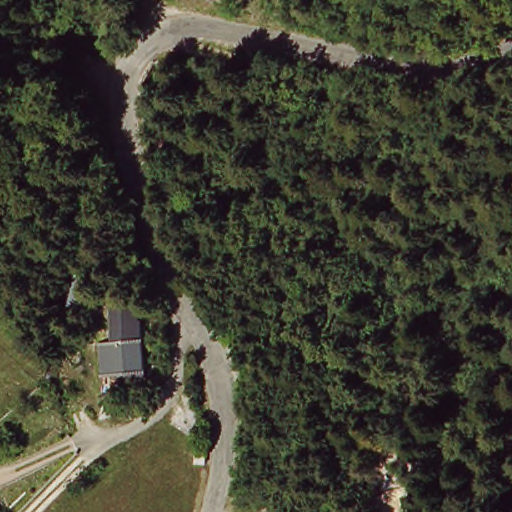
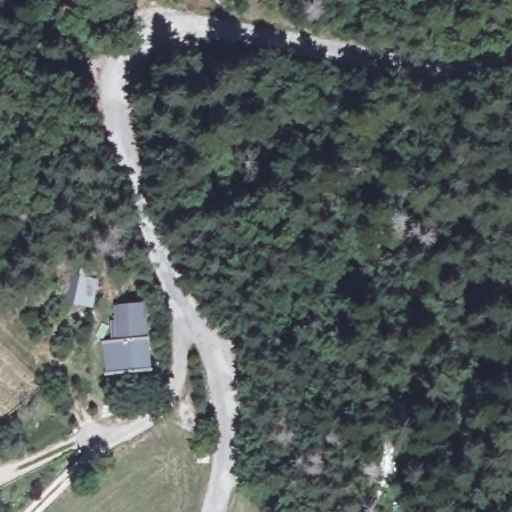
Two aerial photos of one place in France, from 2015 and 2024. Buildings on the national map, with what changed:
unchanged [(117,325),(145,318),(152,377),(128,382),(127,372),(109,376),(105,345),(117,325)]

